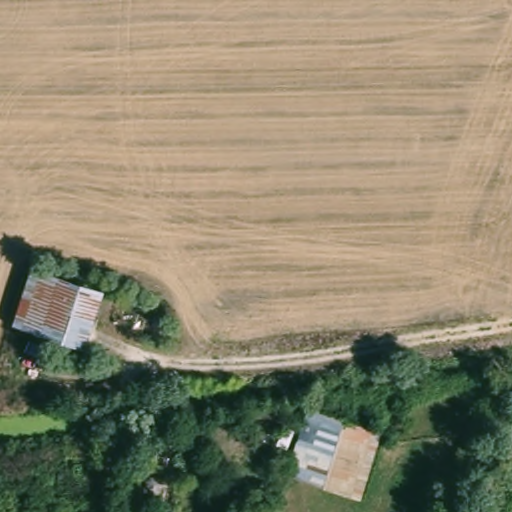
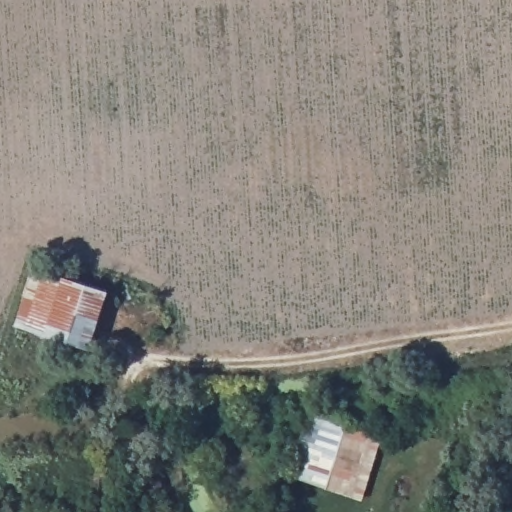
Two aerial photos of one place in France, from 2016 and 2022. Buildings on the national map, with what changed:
unchanged [(32,265),(105,287),(86,350),(15,324),(32,265)]
unchanged [(287,477),(310,408),(387,432),(364,505),(287,477)]

